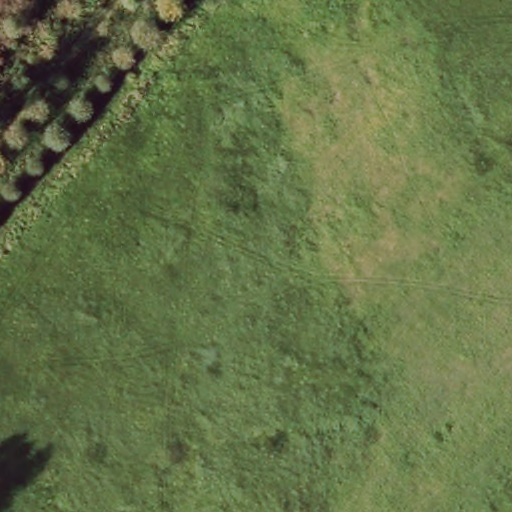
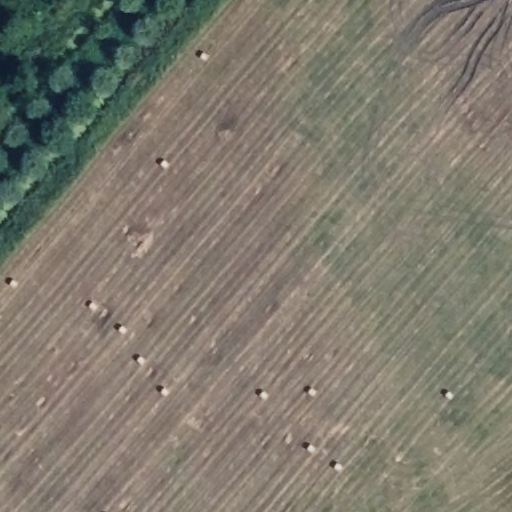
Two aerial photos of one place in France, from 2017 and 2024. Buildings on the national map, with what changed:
[]

